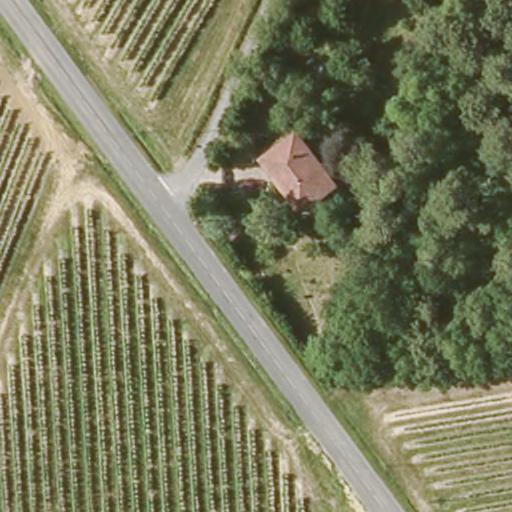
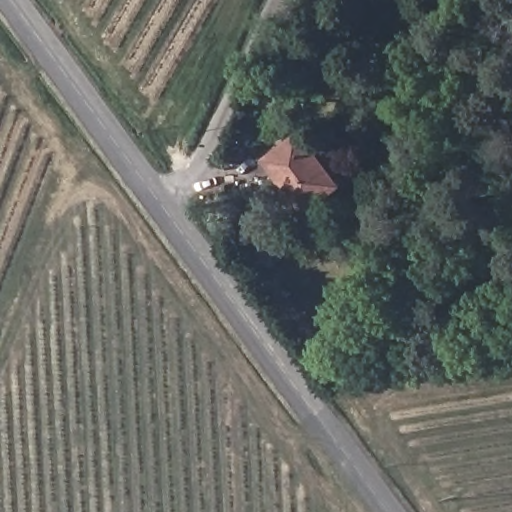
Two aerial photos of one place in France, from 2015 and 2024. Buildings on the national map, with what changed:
unchanged [(337,186),(300,212),(262,158),(300,132),(337,186)]

